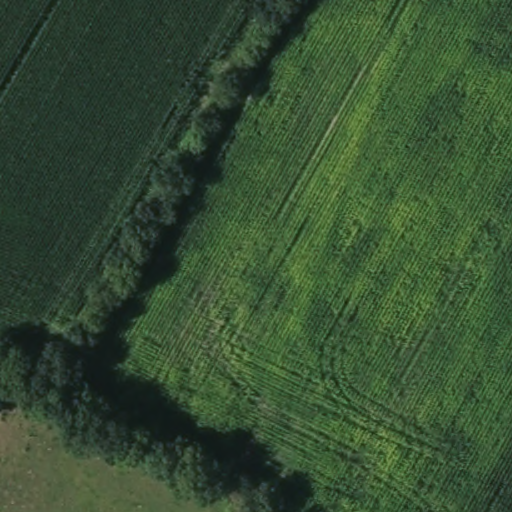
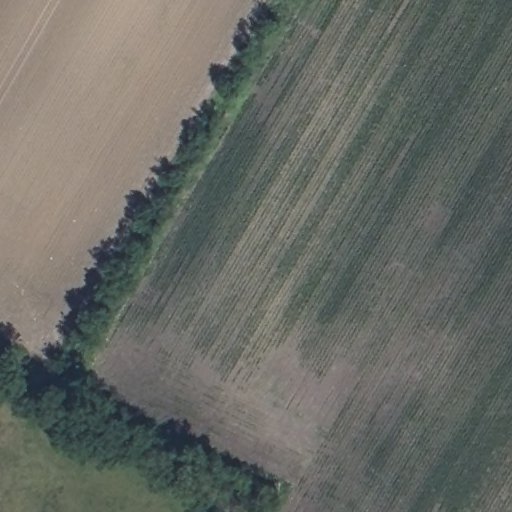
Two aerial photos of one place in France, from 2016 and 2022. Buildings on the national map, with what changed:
[]

